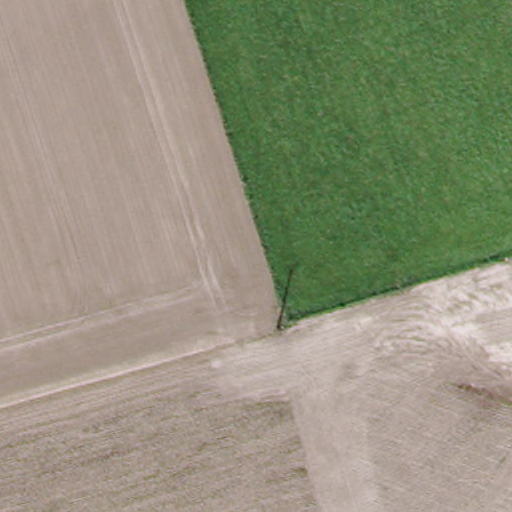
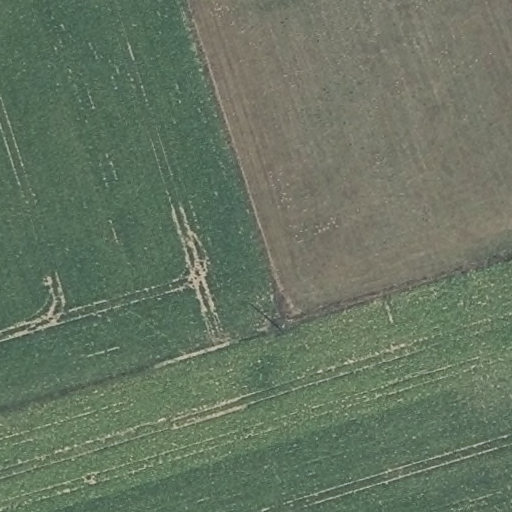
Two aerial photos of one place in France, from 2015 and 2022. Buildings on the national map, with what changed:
[]

